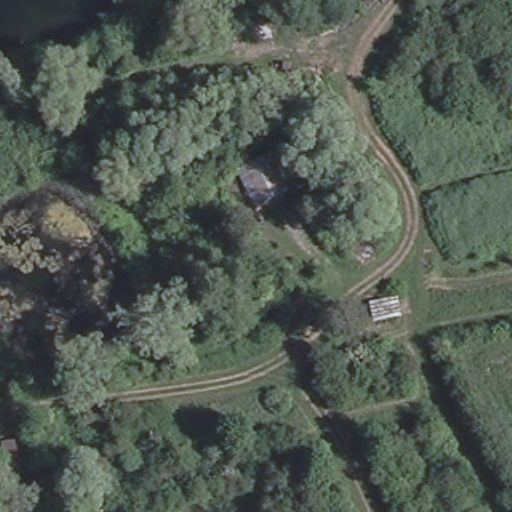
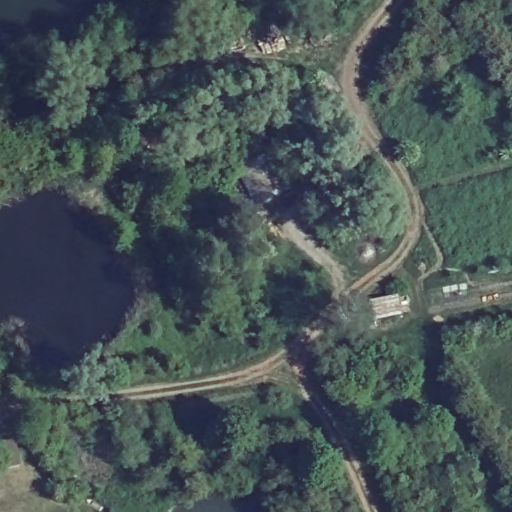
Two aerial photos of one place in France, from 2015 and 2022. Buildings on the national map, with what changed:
unchanged [(274,151),(294,188),(256,206),(235,170),(274,151)]
unchanged [(398,317),(371,323),(367,289),(393,288),(398,317)]

